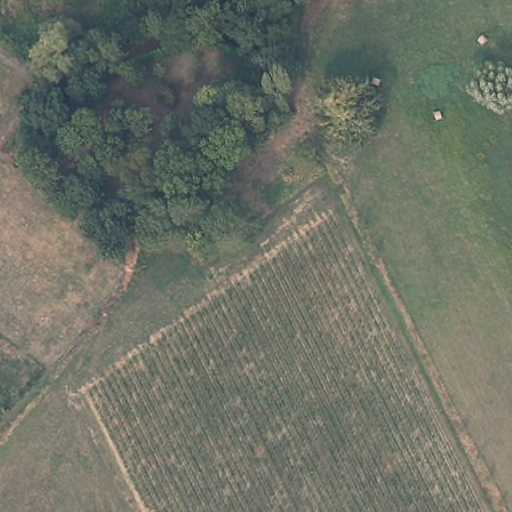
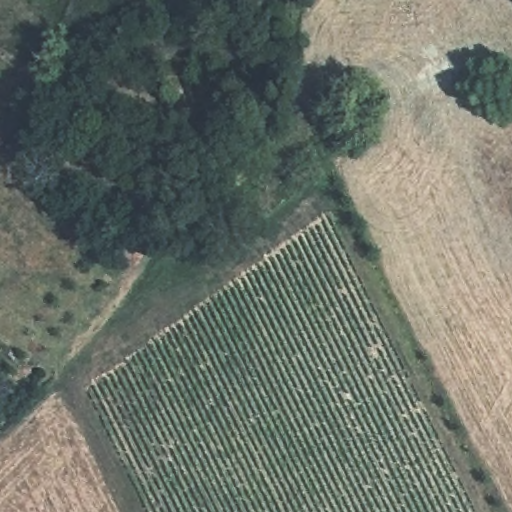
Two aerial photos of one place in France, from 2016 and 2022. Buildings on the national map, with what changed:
[]

